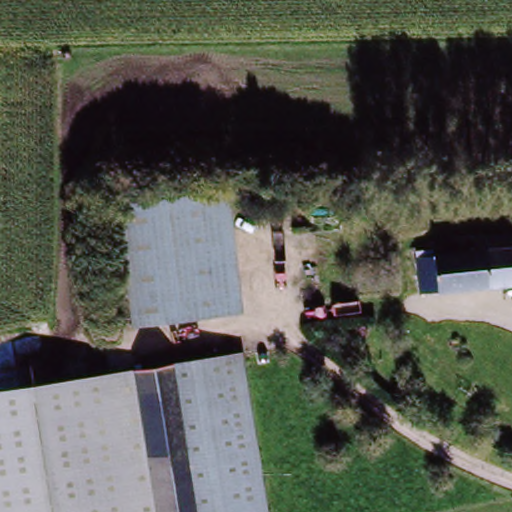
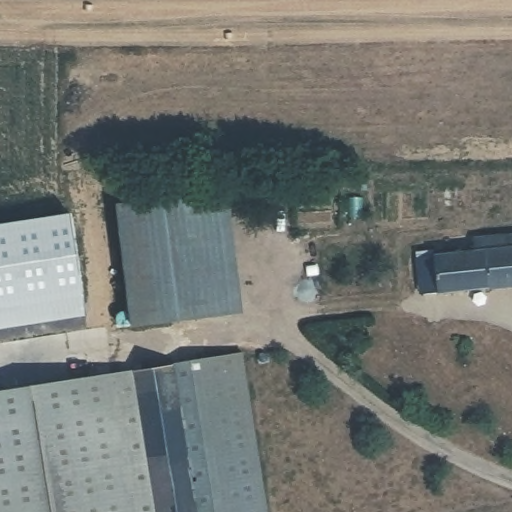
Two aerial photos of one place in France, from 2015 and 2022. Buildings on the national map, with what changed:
unchanged [(225,192),(240,311),(132,325),(117,206),(225,192)]
new [(83,317),(0,329),(0,224),(68,214),(83,317)]
unchanged [(418,292),(414,246),(431,245),(432,252),(471,249),(470,235),(512,231),(512,283),(419,292),(418,292)]
unchanged [(244,351),(271,512),(0,512),(0,392),(99,375),(244,351)]

